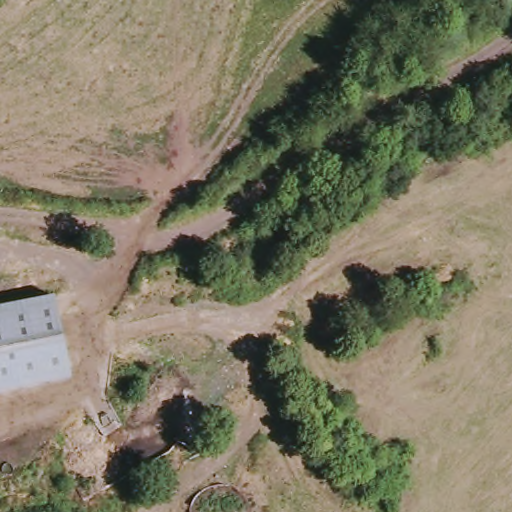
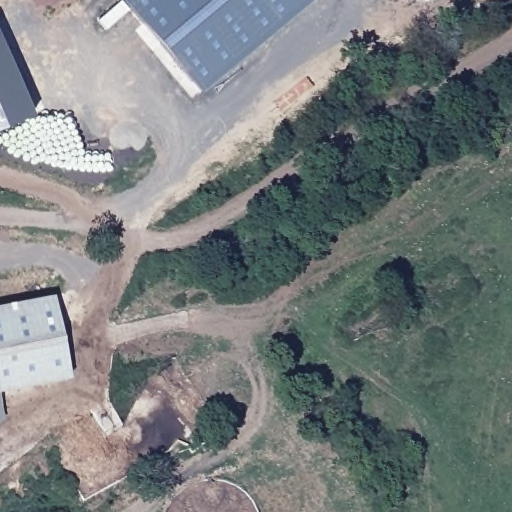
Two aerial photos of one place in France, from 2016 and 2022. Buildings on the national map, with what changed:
new [(213,88),(139,0),(320,0),(213,88)]
new [(43,113),(0,131),(0,22),(4,21),(43,113)]
unchanged [(74,380),(0,395),(0,310),(56,299),(74,380)]

